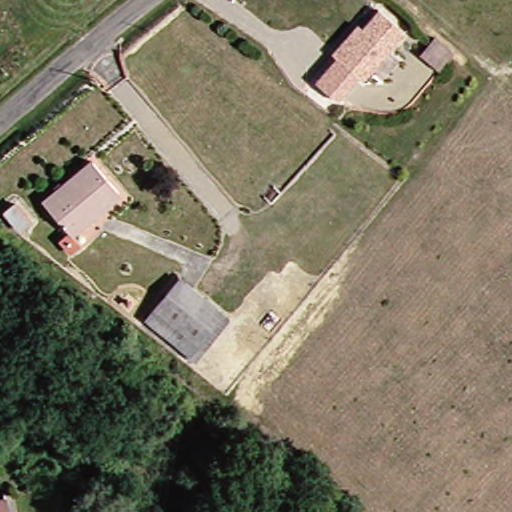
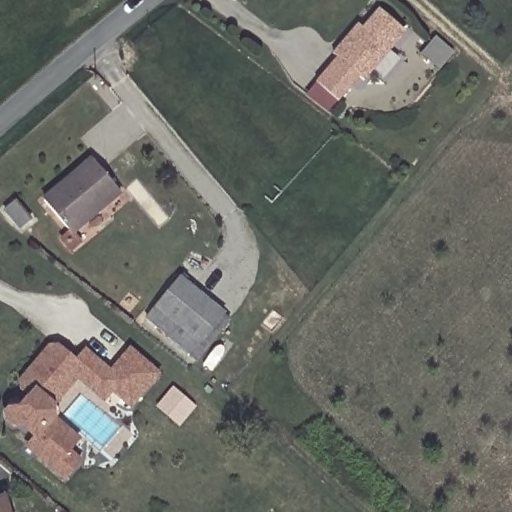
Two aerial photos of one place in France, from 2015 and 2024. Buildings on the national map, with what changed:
unchanged [(385,77),(376,68),(365,79),(361,75),(338,99),(316,77),(339,54),(335,50),(345,38),(359,22),(365,27),(381,7),(409,34),(392,52),(401,61),(385,77)]
unchanged [(440,67),(422,51),(436,35),(454,52),(440,67)]
unchanged [(79,233),(48,205),(88,161),(120,190),(79,233)]
unchanged [(205,349),(152,320),(171,287),(223,317),(205,349)]
new [(130,407),(112,392),(104,401),(77,377),(53,407),(54,420),(79,440),(69,453),(79,462),(65,478),(28,447),(36,436),(17,423),(16,425),(13,425),(9,423),(7,421),(7,417),(8,413),(11,412),(16,411),(20,412),(30,397),(23,391),(23,381),(50,348),(59,349),(75,362),(84,351),(109,373),(130,351),(158,375),(130,407)]
unchanged [(7,502),(12,501),(13,507),(14,512),(0,512),(0,503),(7,502)]

